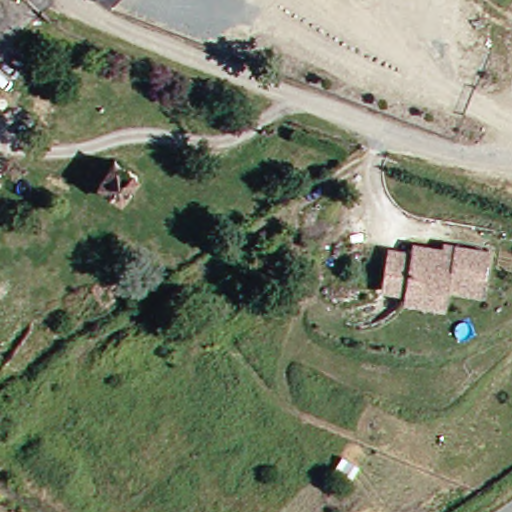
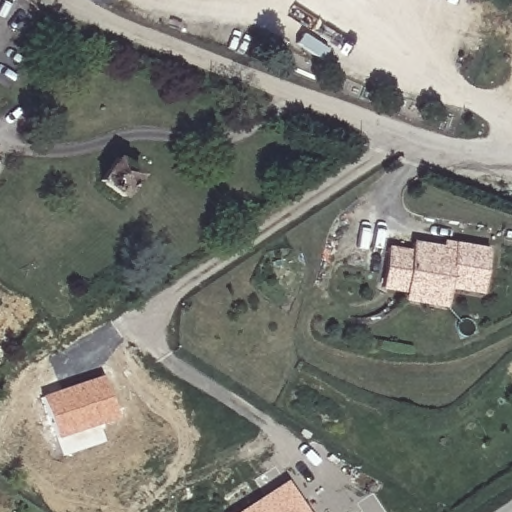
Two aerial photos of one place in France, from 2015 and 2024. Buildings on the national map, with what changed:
unchanged [(109,0),(123,0),(117,7),(109,0)]
unchanged [(0,9),(0,7),(1,8),(0,9)]
unchanged [(130,175),(117,199),(92,185),(105,161),(130,175)]
unchanged [(408,294),(386,290),(393,246),(416,251),(417,240),(450,247),(449,240),(494,248),(489,296),(454,291),(453,309),(406,303),(408,294)]
new [(116,420),(55,441),(39,397),(101,376),(116,420)]
new [(286,480),(308,512),(237,512),(286,480)]

